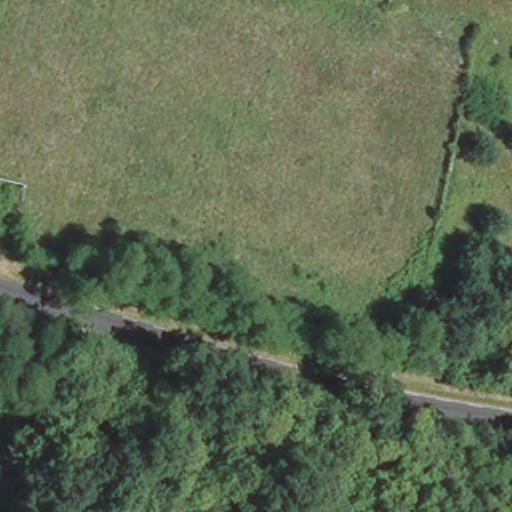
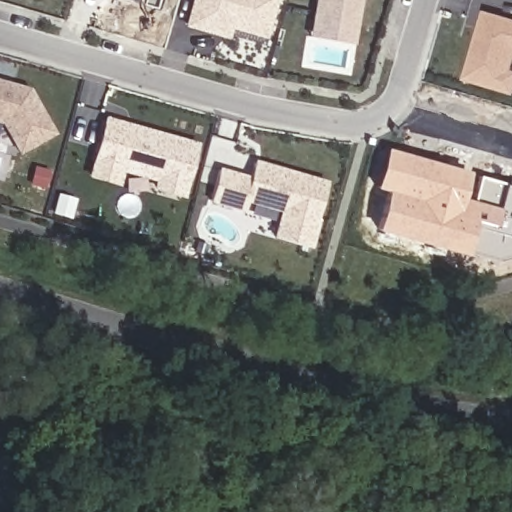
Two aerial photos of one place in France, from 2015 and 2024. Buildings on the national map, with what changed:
new [(277,0),(265,40),(230,29),(228,39),(183,27),(191,0),(277,0)]
new [(361,0),(354,44),(309,37),(315,0),(361,0)]
new [(512,95),(464,80),(485,10),(512,18),(512,95)]
new [(1,124),(0,124),(0,80),(29,88),(54,134),(18,154),(1,124)]
new [(104,116),(198,143),(183,198),(150,190),(153,182),(122,173),(118,187),(86,179),(104,116)]
new [(372,189),(385,149),(468,173),(462,199),(470,200),(477,176),(504,183),(503,184),(512,187),(512,256),(491,261),(464,254),(463,257),(372,230),(384,192),(372,189)]
new [(218,167),(248,175),(253,159),(326,181),(316,219),(318,220),(309,249),(270,238),(278,212),(245,203),(243,213),(208,203),(218,167)]
unchanged [(3,469),(0,479),(0,468),(3,469)]

